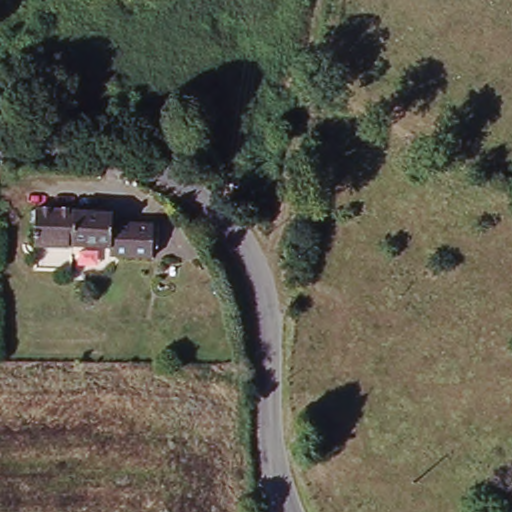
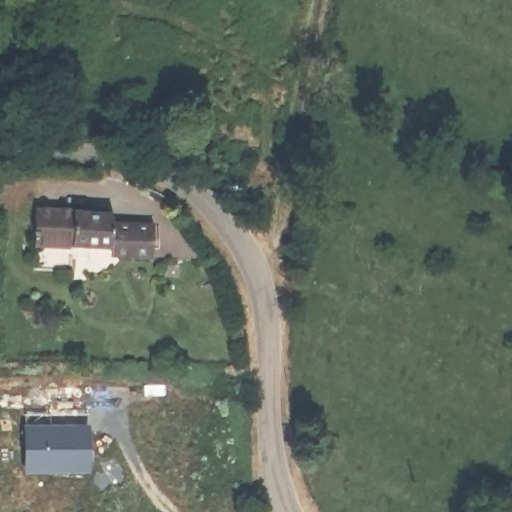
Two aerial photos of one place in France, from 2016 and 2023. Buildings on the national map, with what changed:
unchanged [(117,227),(117,232),(157,230),(155,267),(118,268),(115,262),(35,262),(36,226),(117,227)]
new [(90,473),(24,473),(24,426),(90,426),(90,473)]

